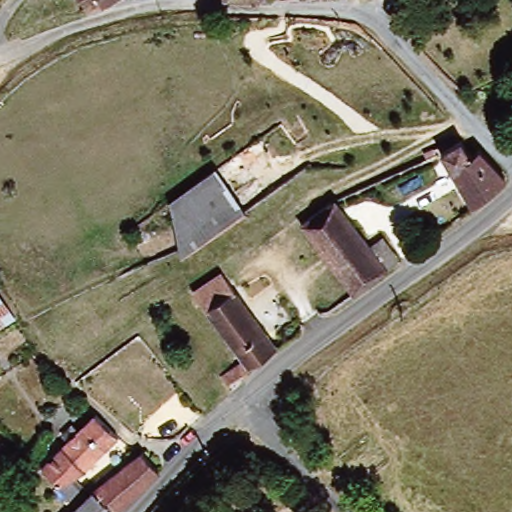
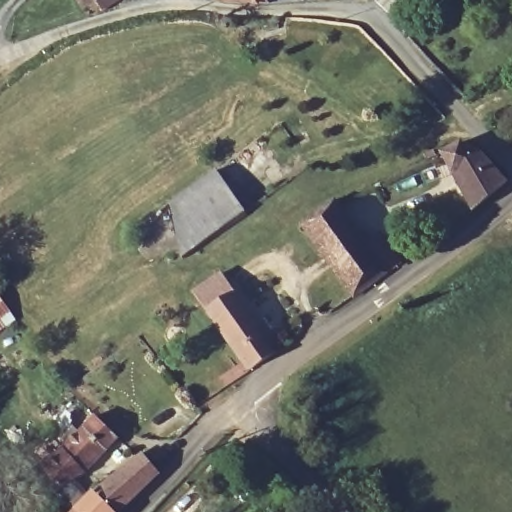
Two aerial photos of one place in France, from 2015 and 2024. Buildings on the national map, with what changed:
unchanged [(85,15),(74,0),(115,0),(100,10),(98,7),(85,15)]
unchanged [(270,6),(227,0),(267,0),(270,6)]
unchanged [(183,261),(164,208),(274,126),(305,169),(282,185),(202,247),(183,261)]
unchanged [(438,155),(460,143),(470,158),(482,150),(510,187),(477,209),(438,155)]
unchanged [(330,202),(383,275),(350,300),(297,228),(309,219),(330,202)]
unchanged [(253,371),(196,291),(205,284),(221,270),(229,280),(281,350),(253,371)]
unchanged [(60,491),(40,466),(95,414),(113,439),(60,491)]
unchanged [(83,512),(140,456),(158,478),(126,512),(83,512)]

